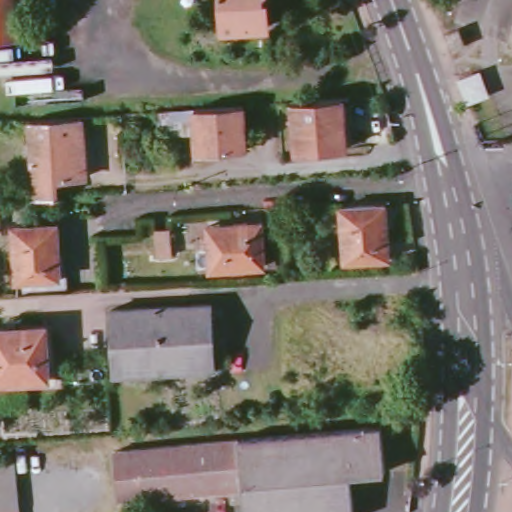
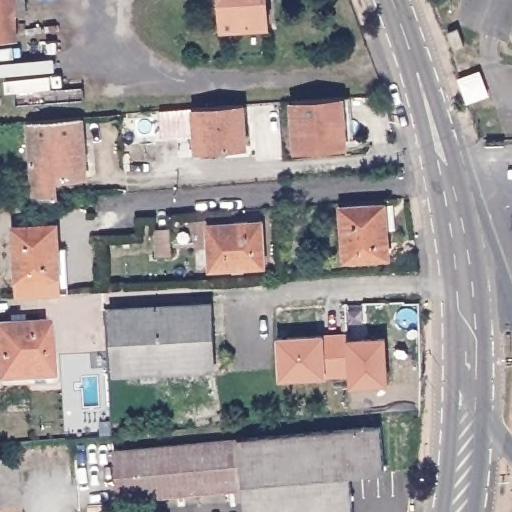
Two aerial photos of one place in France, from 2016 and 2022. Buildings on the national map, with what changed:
unchanged [(0,40),(0,0),(15,0),(16,40),(0,40)]
unchanged [(222,27),(221,0),(267,0),(269,24),(222,27)]
unchanged [(449,31),(459,27),(466,45),(455,49),(449,31)]
unchanged [(461,79),(479,71),(488,93),(469,101),(461,79)]
unchanged [(351,96),(354,145),(346,146),(295,150),(291,101),(341,97),(351,96)]
unchanged [(246,146),(194,150),(193,132),(180,133),(163,134),(161,111),(178,110),(191,109),(242,105),(246,146)]
unchanged [(33,200),(28,121),(81,117),(84,178),(55,180),(57,198),(33,200)]
unchanged [(340,207),(384,205),(388,256),(344,261),(340,207)]
unchanged [(18,285),(13,220),(55,215),(58,268),(63,268),(63,283),(18,285)]
unchanged [(207,225),(260,222),(264,265),(210,268),(207,225)]
unchanged [(153,230),(167,229),(169,255),(155,255),(153,230)]
unchanged [(215,368),(114,375),(109,310),(211,303),(215,368)]
unchanged [(0,328),(45,325),(48,378),(0,381),(0,328)]
new [(351,375),(281,377),(278,338),(324,335),(324,337),(349,336),(349,338),(351,375)]
new [(391,385),(352,386),(351,375),(349,338),(387,336),(391,385)]
unchanged [(230,502),(228,490),(118,500),(113,451),(379,427),(384,472),(350,475),(352,512),(244,512),(243,502),(230,502)]
unchanged [(16,511),(16,512),(0,512),(0,462),(12,461),(16,511)]

